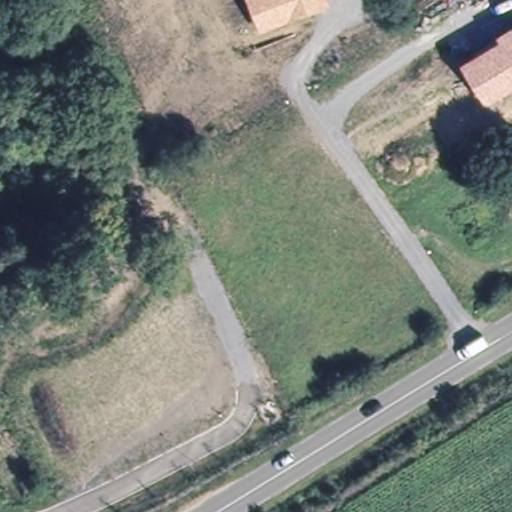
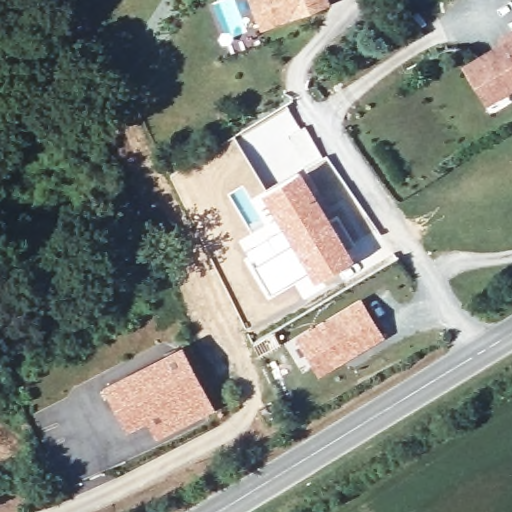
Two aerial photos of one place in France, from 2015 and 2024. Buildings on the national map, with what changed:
unchanged [(329,2),(259,28),(247,0),(328,0),(329,2)]
unchanged [(486,102),(460,65),(499,40),(496,35),(511,26),(512,26),(512,86),(486,102)]
new [(331,219),(336,216),(352,243),(347,246),(354,258),(314,281),(306,268),(269,292),(245,248),(281,225),(261,193),(300,168),(331,219)]
new [(385,339),(318,377),(295,336),(360,299),(385,339)]
new [(164,433),(155,414),(127,430),(101,384),(178,345),(211,407),(164,433)]

